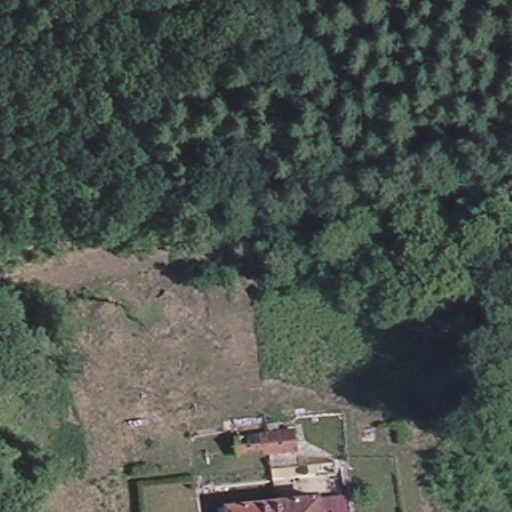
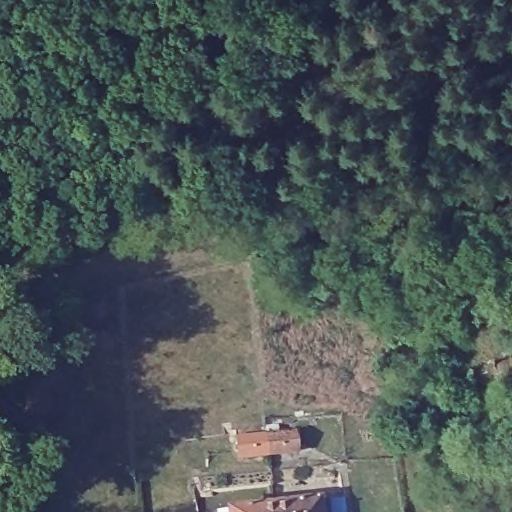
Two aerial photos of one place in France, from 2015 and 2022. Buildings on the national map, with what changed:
unchanged [(294,424),(297,453),(268,456),(239,459),(236,430),(265,427),(294,424)]
unchanged [(273,486),(318,481),(319,487),(324,487),(325,502),(320,502),(321,512),(276,512),(273,486)]
unchanged [(230,511),(225,512),(224,497),(229,497),(228,491),(273,486),(276,512),(231,512),(230,511)]

